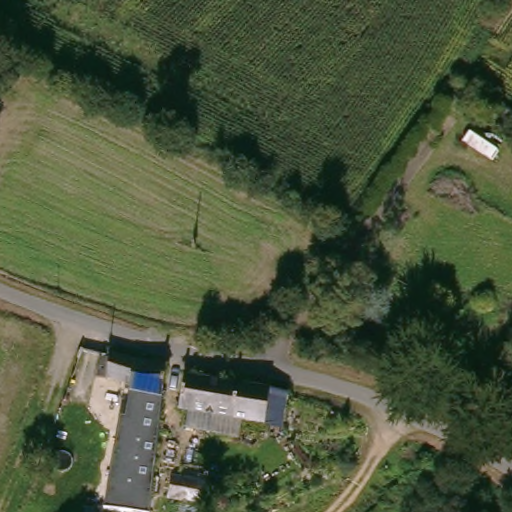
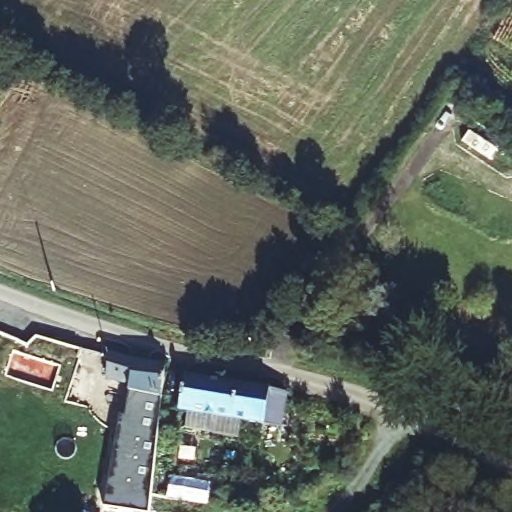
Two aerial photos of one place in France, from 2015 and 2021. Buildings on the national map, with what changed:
unchanged [(123,417),(126,388),(96,379),(104,353),(136,363),(164,367),(148,512),(101,512),(115,415),(123,417)]
unchanged [(278,431),(258,426),(177,409),(185,376),(258,392),(264,395),(285,399),(278,431)]
unchanged [(172,474),(210,478),(210,500),(172,497),(172,474)]

